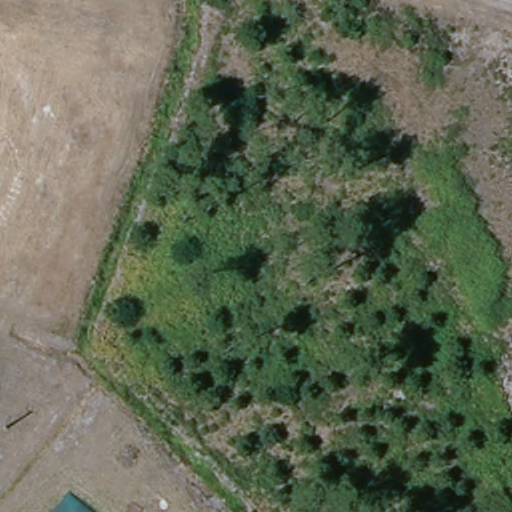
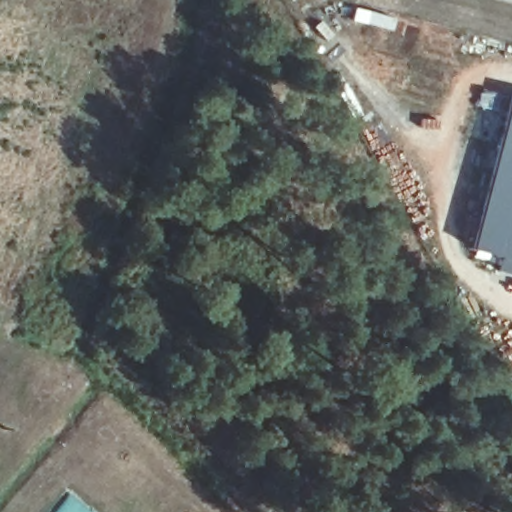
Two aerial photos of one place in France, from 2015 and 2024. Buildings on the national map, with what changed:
new [(512,199),(490,193),(512,106),(512,199)]
new [(512,199),(512,254),(476,244),(490,193),(512,199)]

